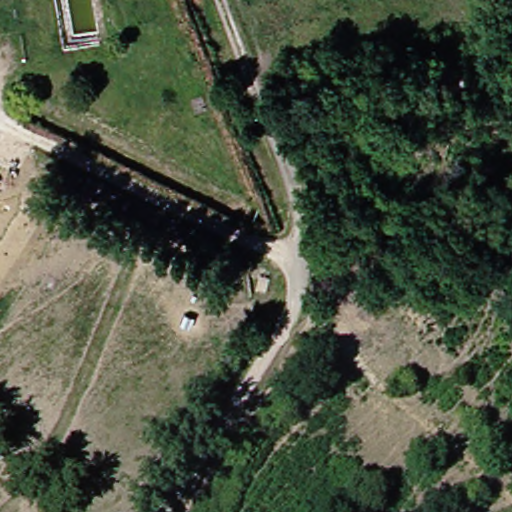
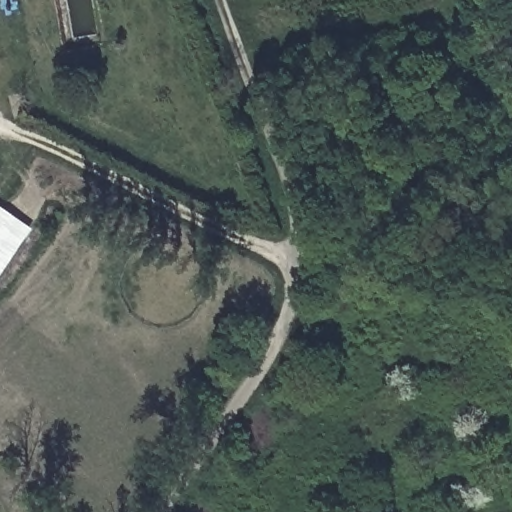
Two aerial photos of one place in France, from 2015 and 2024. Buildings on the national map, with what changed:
new [(0,279),(0,204),(35,229),(0,279)]

